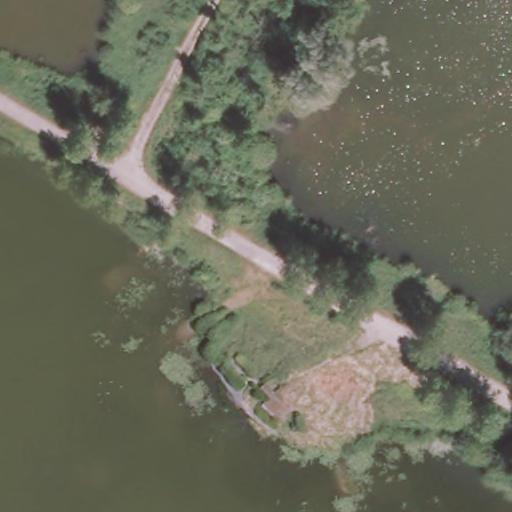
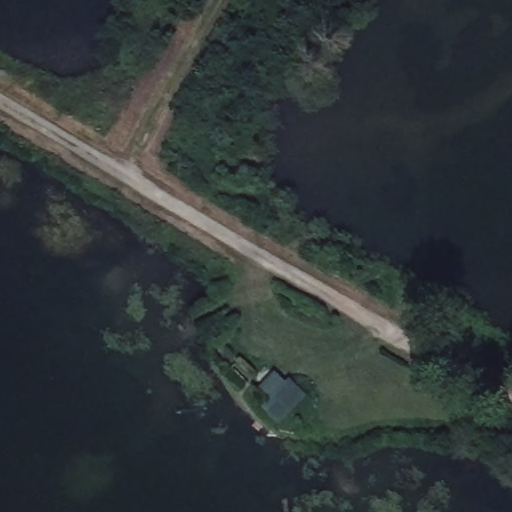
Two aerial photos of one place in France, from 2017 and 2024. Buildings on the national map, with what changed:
unchanged [(293,415),(283,427),(266,412),(276,400),(293,415)]

